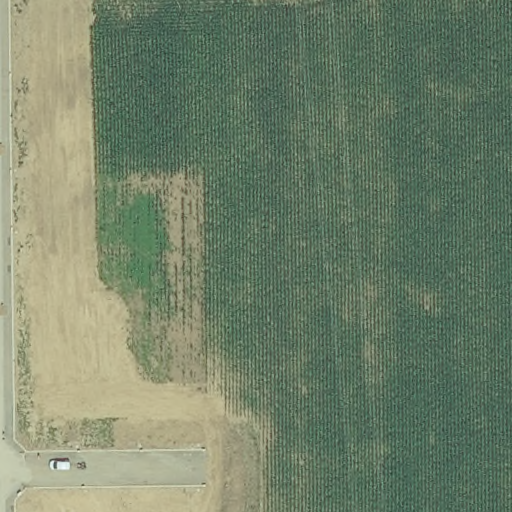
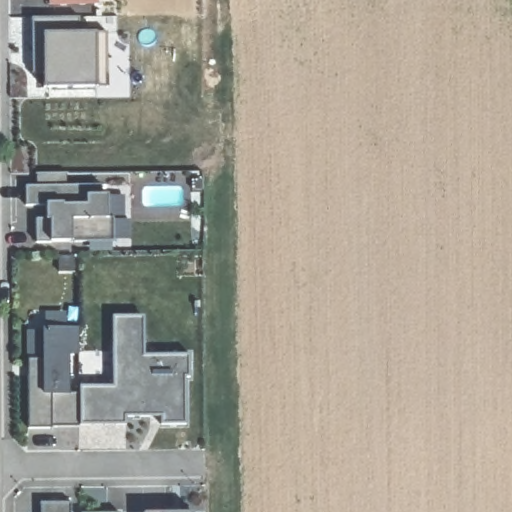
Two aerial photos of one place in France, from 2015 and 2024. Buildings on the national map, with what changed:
new [(98,7),(48,9),(48,0),(98,0),(98,7)]
new [(80,19),(79,34),(106,34),(108,89),(44,87),(44,73),(34,75),(32,19),(80,19)]
new [(37,174),(69,174),(69,186),(37,186),(37,174)]
unchanged [(115,242),(73,242),(53,242),(53,243),(38,243),(38,219),(52,219),(51,206),(28,207),(28,186),(103,186),(103,195),(109,195),(110,218),(115,218),(115,242)]
new [(128,418),(128,426),(81,426),(81,386),(114,386),(114,341),(114,316),(146,316),(146,341),(146,355),(191,355),(191,378),(188,378),(188,425),(163,426),(163,417),(152,417),(128,418)]
new [(31,427),(30,359),(43,358),(43,327),(78,328),(77,355),(68,353),(68,392),(81,392),(81,426),(31,427)]
unchanged [(73,512),(42,512),(42,502),(73,502),(73,512)]

